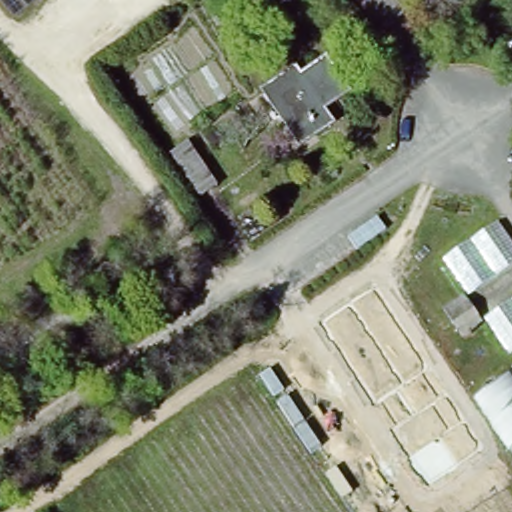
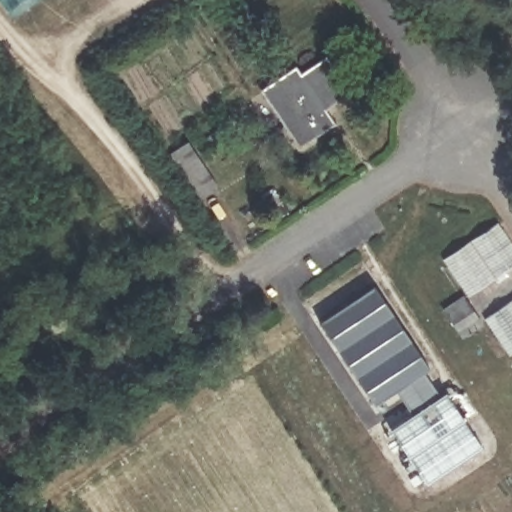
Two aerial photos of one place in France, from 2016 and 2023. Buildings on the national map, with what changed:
unchanged [(33,9),(13,24),(0,5),(0,0),(27,0),(33,9)]
unchanged [(317,111),(325,122),(298,142),(263,92),(290,72),(297,82),(325,62),(345,91),(317,111)]
unchanged [(192,145),(222,190),(198,203),(170,157),(192,145)]
unchanged [(445,263),(495,224),(512,244),(512,262),(470,295),(445,263)]
new [(425,484),(389,428),(408,413),(393,391),(372,405),(318,322),(375,284),(428,367),(424,370),(440,394),(444,391),(482,447),(425,484)]
unchanged [(483,325),(465,338),(445,310),(464,296),(483,325)]
unchanged [(512,302),(512,356),(486,322),(512,302)]
demolished [(512,375),(512,449),(478,398),(510,372),(512,375)]

